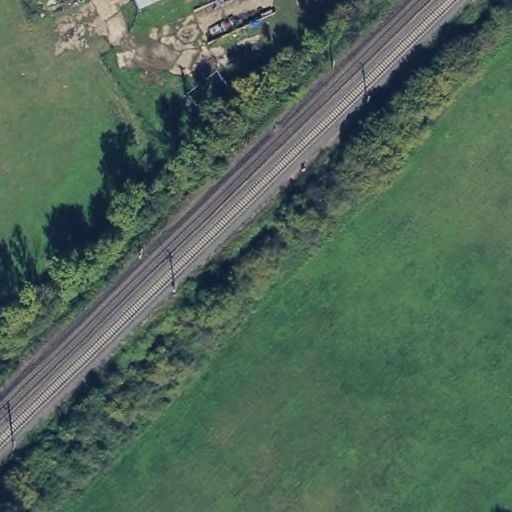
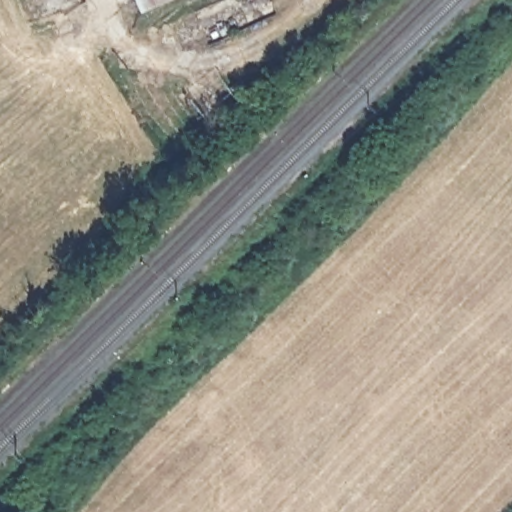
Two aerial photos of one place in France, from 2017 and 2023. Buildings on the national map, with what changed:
unchanged [(134,0),(155,0),(137,8),(134,0)]

